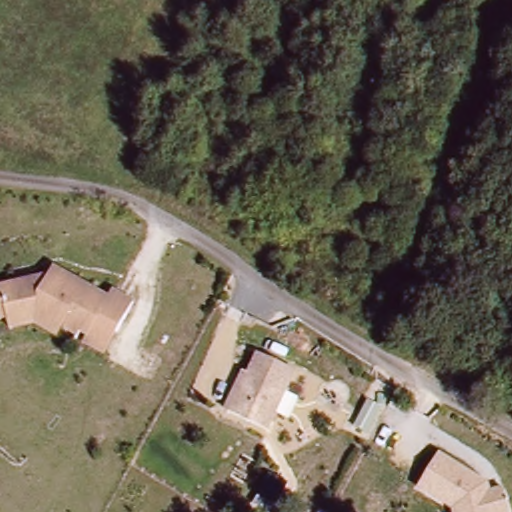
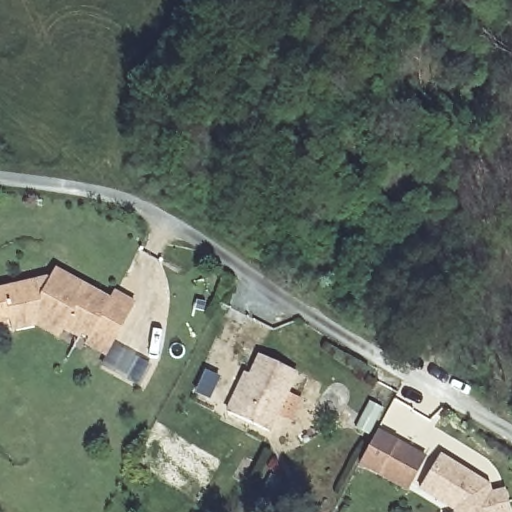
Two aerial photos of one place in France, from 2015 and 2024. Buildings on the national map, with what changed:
unchanged [(84,329),(83,333),(79,341),(38,323),(15,329),(11,319),(0,322),(0,290),(46,276),(51,278),(55,268),(110,294),(114,287),(136,297),(120,329),(110,350),(89,340),(92,333),(84,329)]
unchanged [(259,353),(296,369),(270,429),(229,411),(236,395),(240,397),(259,353)]
unchanged [(379,398),(394,407),(381,433),(366,424),(379,398)]
new [(428,455),(409,492),(359,467),(378,431),(428,455)]
unchanged [(421,491),(442,453),(491,482),(494,490),(507,488),(512,512),(454,512),(454,511),(421,491)]

